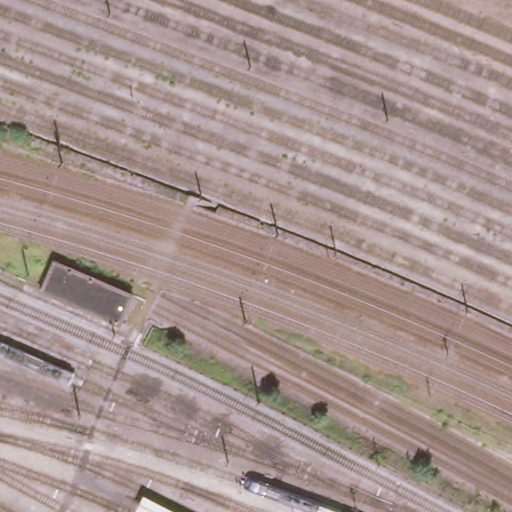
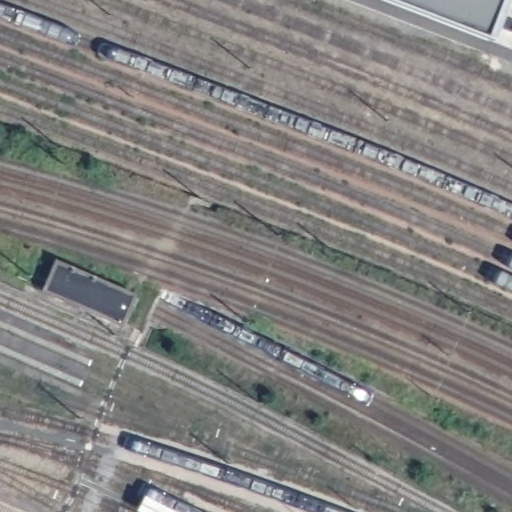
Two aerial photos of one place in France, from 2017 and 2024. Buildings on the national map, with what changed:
new [(377,0),(502,0),(483,40),(377,0)]
unchanged [(135,293),(122,325),(45,290),(56,257),(135,293)]
unchanged [(183,512),(143,512),(134,507),(143,491),(183,512)]

